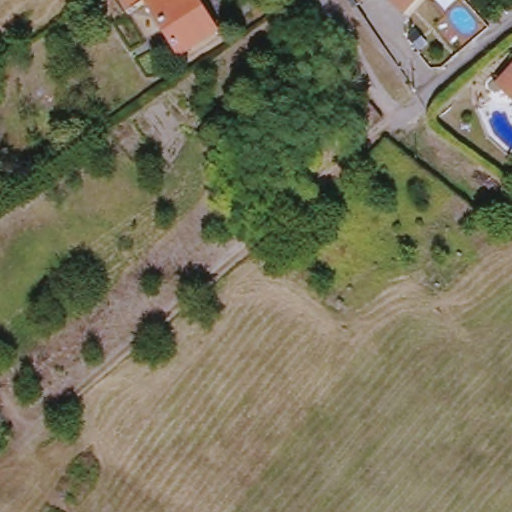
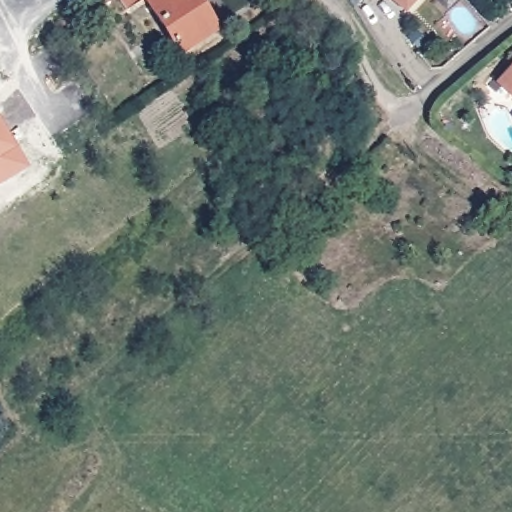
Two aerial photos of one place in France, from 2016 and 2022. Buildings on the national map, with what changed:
unchanged [(131,11),(125,0),(149,0),(131,11)]
unchanged [(186,53),(152,0),(203,0),(223,30),(186,53)]
unchanged [(405,12),(391,0),(416,0),(405,12)]
unchanged [(406,41),(416,53),(407,60),(398,48),(406,41)]
unchanged [(512,69),(512,105),(494,89),(512,69)]
new [(0,182),(0,118),(30,165),(0,182)]

